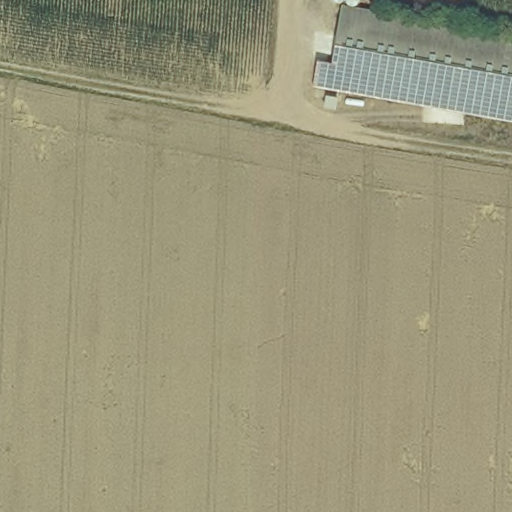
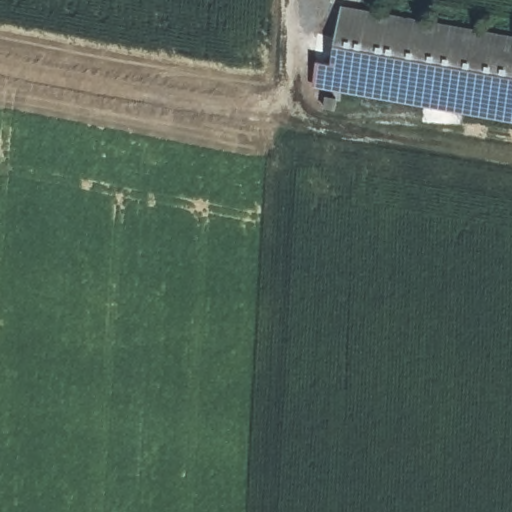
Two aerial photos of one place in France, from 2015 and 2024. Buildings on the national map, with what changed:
unchanged [(332,59),(343,1),(392,10),(512,31),(512,112),(392,91),(329,80),(329,79),(315,76),(318,56),(332,59)]

